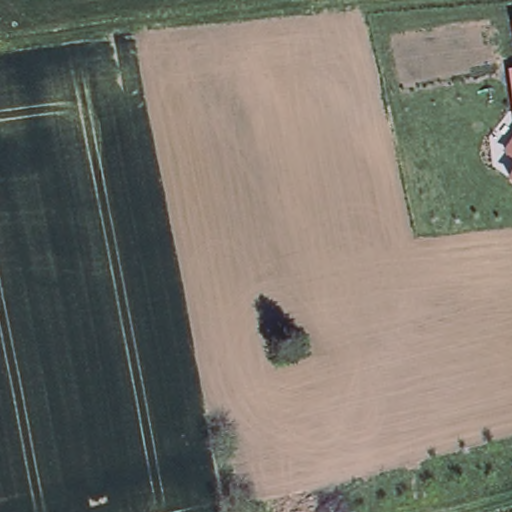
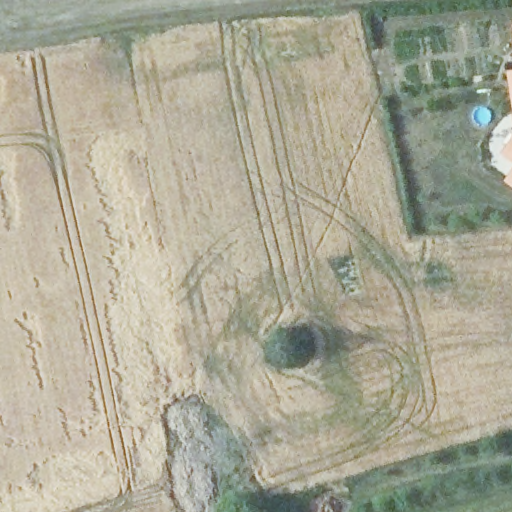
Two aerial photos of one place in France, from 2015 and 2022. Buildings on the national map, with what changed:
unchanged [(508,156),(512,149),(512,158),(508,156)]

